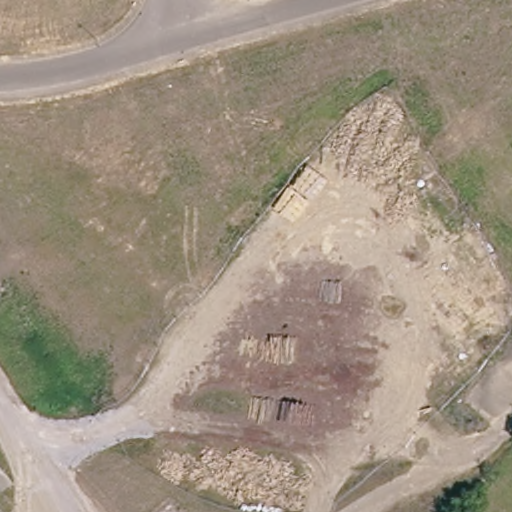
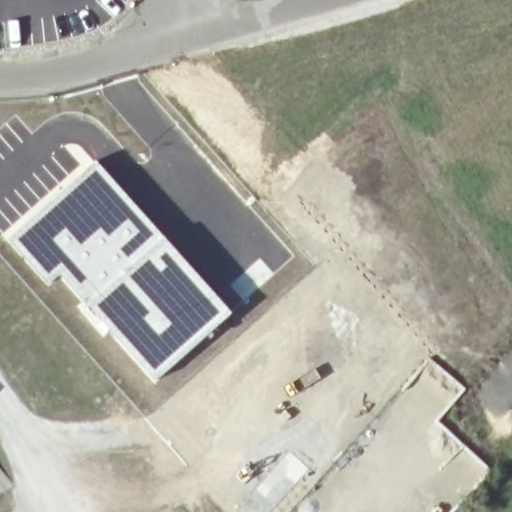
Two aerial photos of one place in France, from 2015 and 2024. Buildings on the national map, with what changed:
new [(46,196),(91,158),(109,175),(232,313),(154,382),(102,323),(58,277),(48,285),(3,236),(46,196)]

